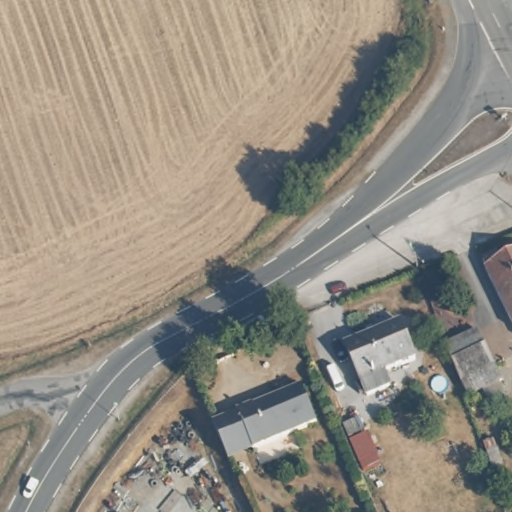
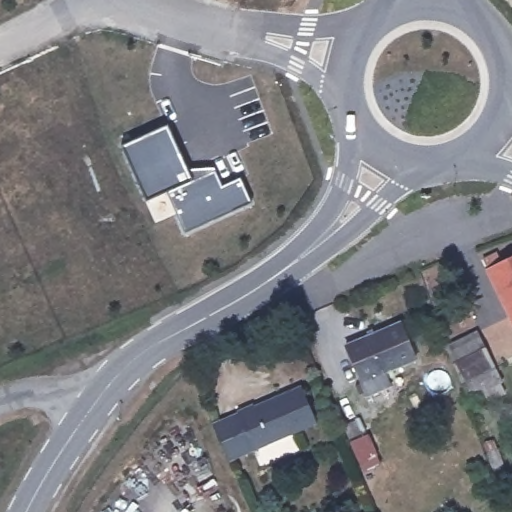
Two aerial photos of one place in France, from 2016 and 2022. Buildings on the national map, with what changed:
new [(120,146),(165,126),(187,169),(213,168),(221,186),(239,177),(251,203),(185,232),(166,192),(147,201),(120,146)]
unchanged [(512,250),(512,318),(487,262),(512,250)]
unchanged [(411,350),(381,362),(386,375),(361,386),(341,338),(396,314),(411,350)]
unchanged [(469,328),(491,381),(462,393),(457,380),(441,339),(469,328)]
unchanged [(237,409),(253,402),(254,404),(266,399),(271,401),(278,399),(277,395),(301,386),(318,423),(255,447),(239,411),(238,411),(237,409)]
unchanged [(238,411),(239,411),(255,447),(230,457),(214,420),(238,411)]
unchanged [(335,424),(350,418),(357,436),(343,442),(335,424)]

